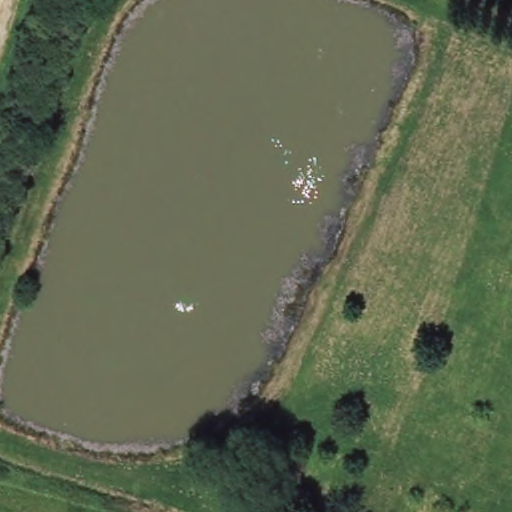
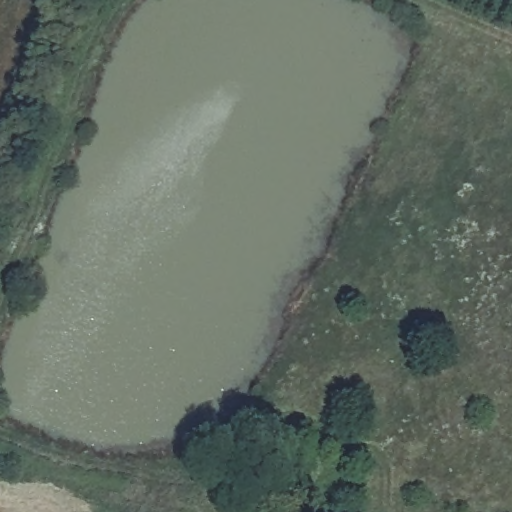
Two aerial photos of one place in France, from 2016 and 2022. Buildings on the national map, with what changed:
unchanged [(317,488),(312,509),(269,496),(274,480),(317,488)]

